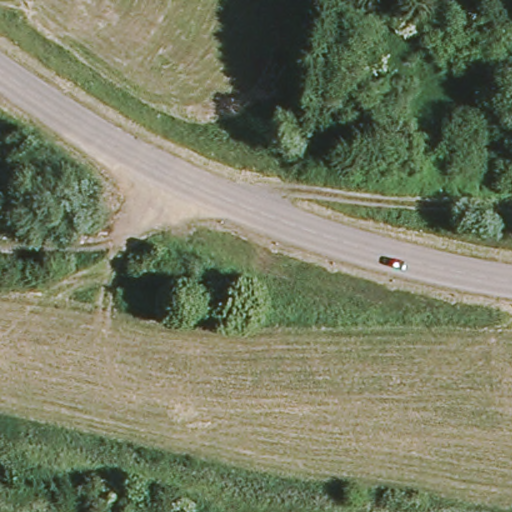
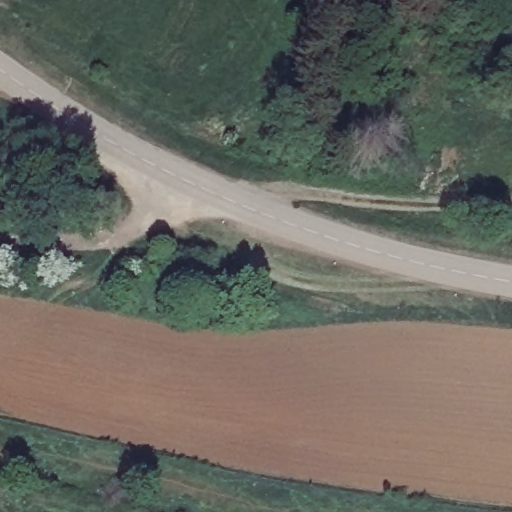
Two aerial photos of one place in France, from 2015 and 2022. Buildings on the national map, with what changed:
unchanged [(362,115),(345,115),(345,102),(362,102),(362,115)]

